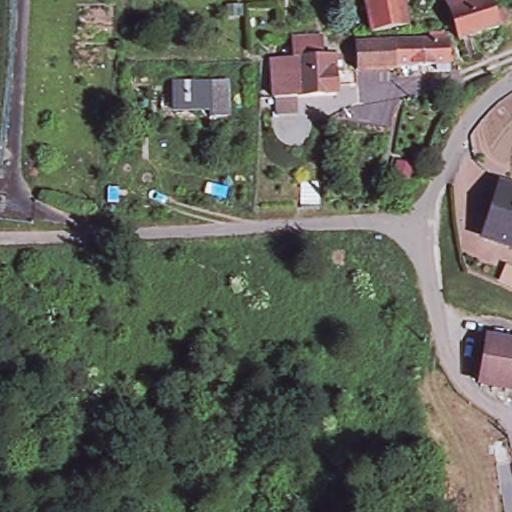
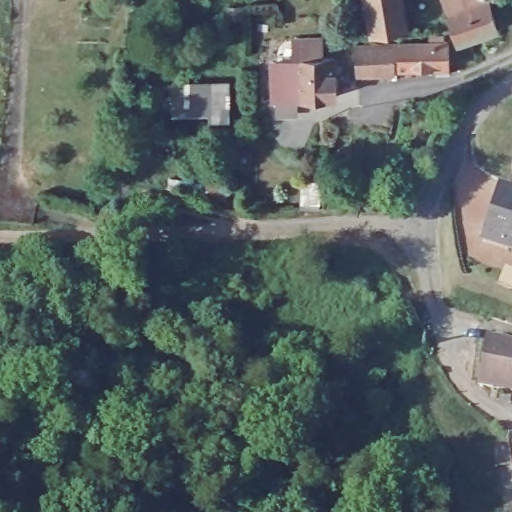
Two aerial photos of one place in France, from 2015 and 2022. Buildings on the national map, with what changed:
unchanged [(371,36),(363,0),(401,0),(407,29),(371,36)]
unchanged [(489,0),(490,1),(494,15),(499,33),(480,38),(460,44),(447,4),(446,0),(489,0)]
unchanged [(273,101),(272,73),(275,72),(274,63),(284,63),(295,62),(294,42),(323,41),(323,61),(327,60),(335,60),(335,97),(297,100),(297,115),(273,116),(273,101)]
unchanged [(358,47),(447,44),(448,67),(396,70),(396,73),(358,76),(358,58),(358,47)]
unchanged [(177,97),(177,86),(215,85),(231,85),(232,120),(214,119),(214,113),(188,112),(177,112),(177,97)]
unchanged [(306,207),(306,180),(324,180),(324,207),(306,207)]
unchanged [(512,253),(482,243),(499,190),(512,194),(512,253)]
unchanged [(512,395),(482,389),(487,345),(512,347),(512,395)]

